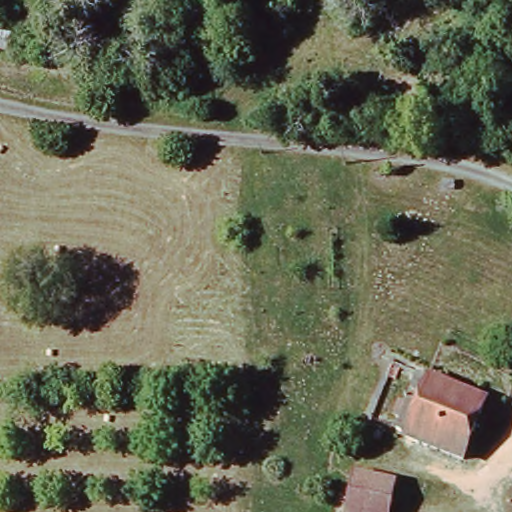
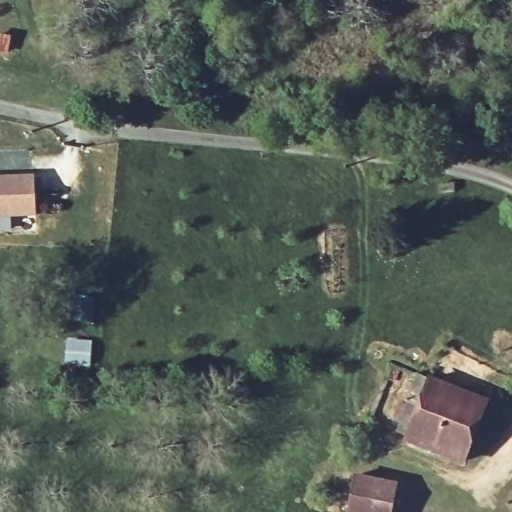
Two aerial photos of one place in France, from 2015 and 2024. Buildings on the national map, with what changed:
new [(34,175),(36,216),(0,218),(0,176),(34,175)]
unchanged [(427,374),(490,398),(467,467),(402,440),(427,374)]
unchanged [(357,477),(398,485),(393,512),(350,512),(357,477)]

